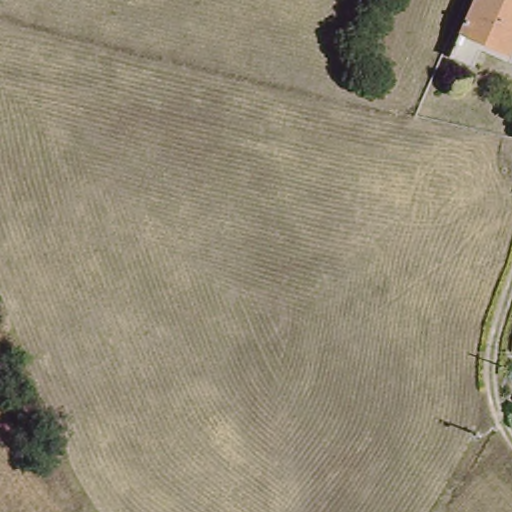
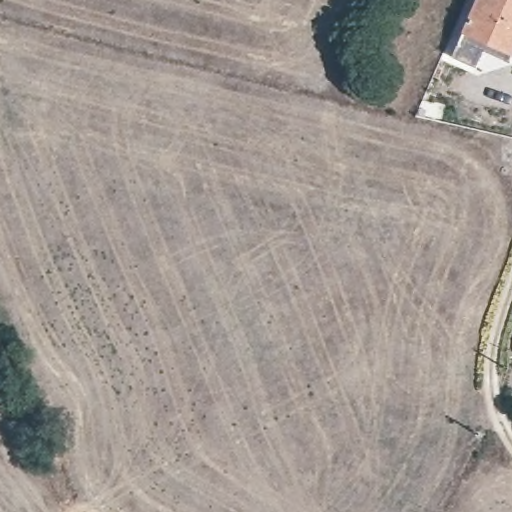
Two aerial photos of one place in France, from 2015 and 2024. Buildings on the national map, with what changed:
unchanged [(484,39),(471,64),(451,55),(476,0),(512,0),(512,52),(484,39)]
unchanged [(512,195),(512,204),(508,201),(512,195)]

